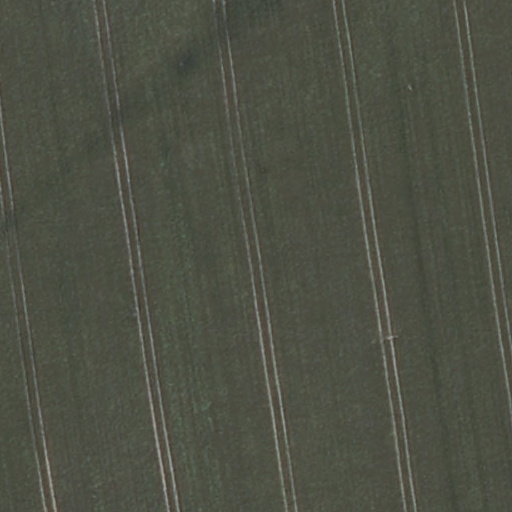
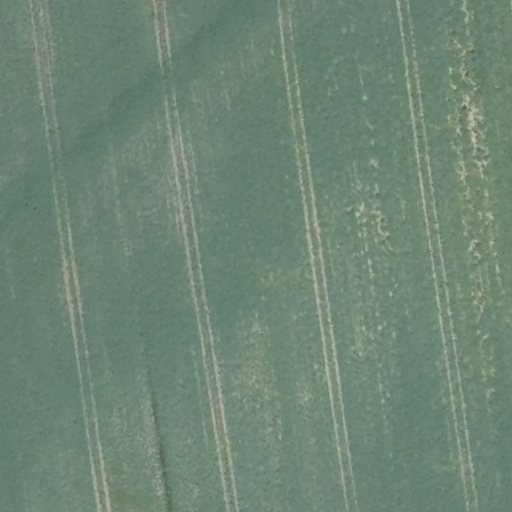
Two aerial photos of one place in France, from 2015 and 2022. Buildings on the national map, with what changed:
[]

